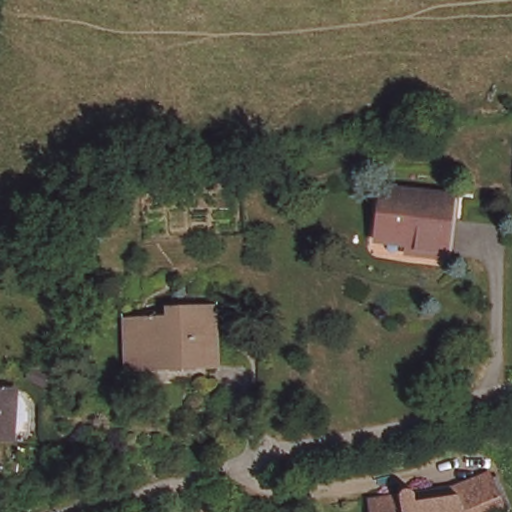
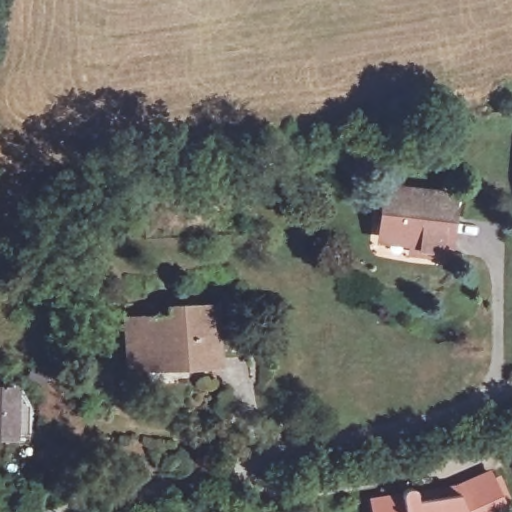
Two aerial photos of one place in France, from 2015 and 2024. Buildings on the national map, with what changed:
unchanged [(445,250),(409,245),(411,231),(379,227),(385,182),(453,190),(445,250)]
unchanged [(141,318),(170,317),(170,308),(208,307),(210,363),(142,365),(130,365),(128,318),(141,318)]
unchanged [(50,371),(43,384),(29,377),(36,364),(50,371)]
unchanged [(22,384),(31,404),(30,431),(14,431),(0,430),(0,383),(16,384),(22,384)]
unchanged [(377,500),(407,495),(407,494),(407,493),(408,492),(408,491),(410,490),(412,489),(414,488),(415,488),(416,489),(417,489),(418,490),(419,490),(420,491),(420,492),(422,493),(432,492),(433,499),(464,494),(461,487),(495,473),(512,512),(378,512),(377,500)]

